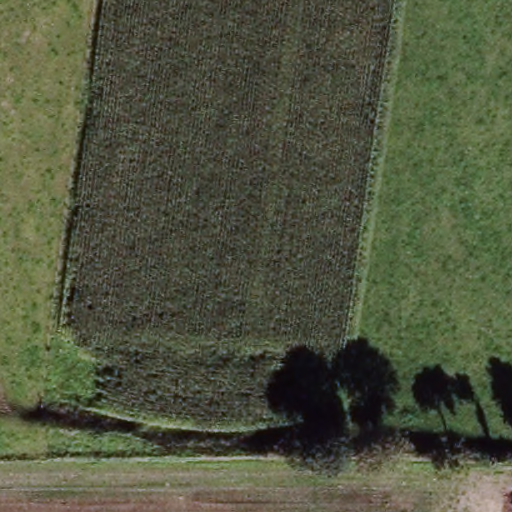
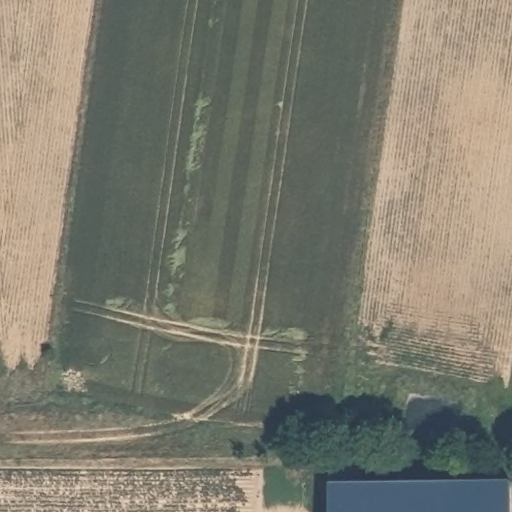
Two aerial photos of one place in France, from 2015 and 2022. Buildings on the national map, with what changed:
new [(332,512),(331,484),(512,483),(512,512),(332,512)]

